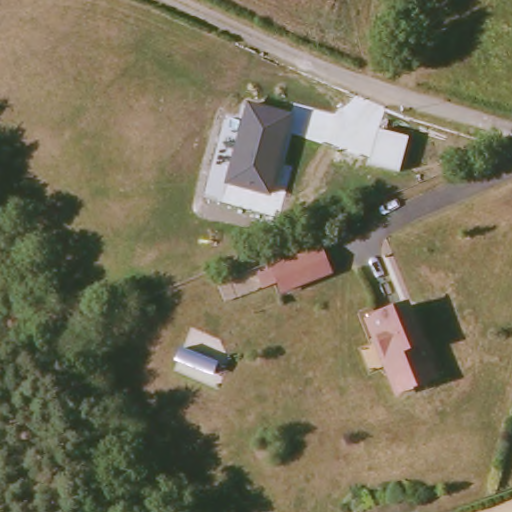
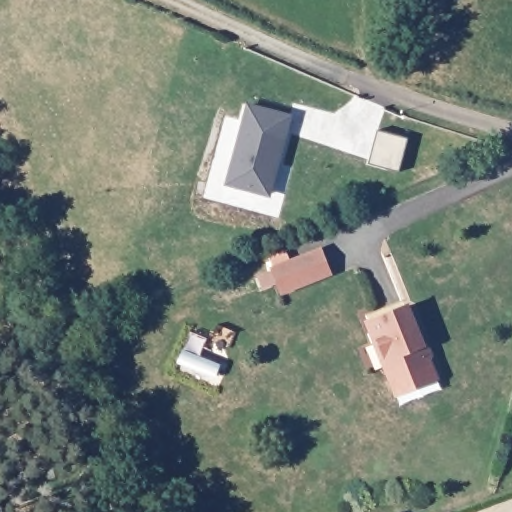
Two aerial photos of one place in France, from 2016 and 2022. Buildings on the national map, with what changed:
unchanged [(248,102),(294,113),(271,197),(224,184),(248,102)]
unchanged [(379,131),(410,140),(401,172),(369,162),(379,131)]
unchanged [(333,272),(280,293),(276,283),(261,288),(255,274),(271,267),(269,265),(321,244),(333,272)]
unchanged [(410,302),(434,368),(393,387),(366,318),(410,302)]

